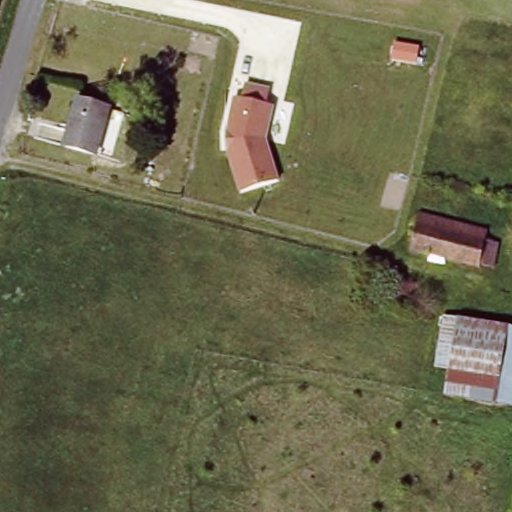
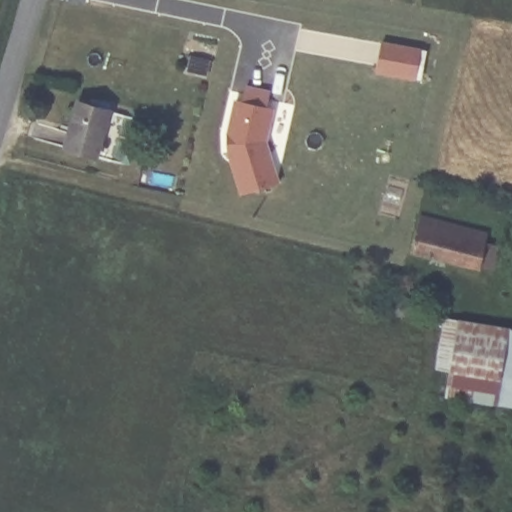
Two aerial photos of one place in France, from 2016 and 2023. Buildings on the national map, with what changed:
new [(381,41),(420,50),(414,79),(375,71),(381,41)]
unchanged [(271,90),(269,106),(276,107),(269,141),(281,182),(240,195),(228,154),(226,132),(234,99),(243,100),(246,84),(271,90)]
unchanged [(108,116),(98,157),(64,149),(74,108),(108,116)]
unchanged [(490,239),(481,274),(409,257),(418,221),(490,239)]
unchanged [(458,321),(511,330),(512,330),(512,411),(497,408),(443,401),(445,375),(429,371),(442,318),(458,321)]

